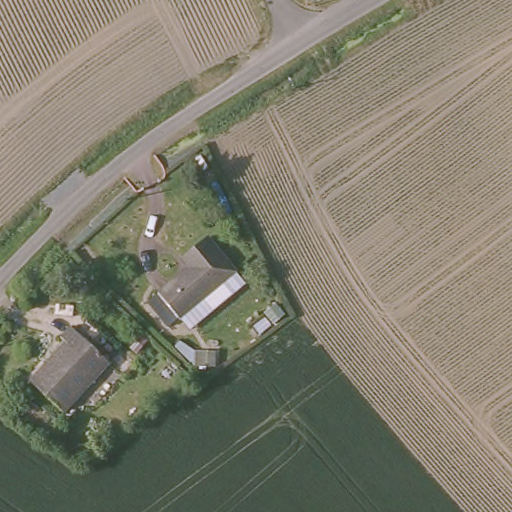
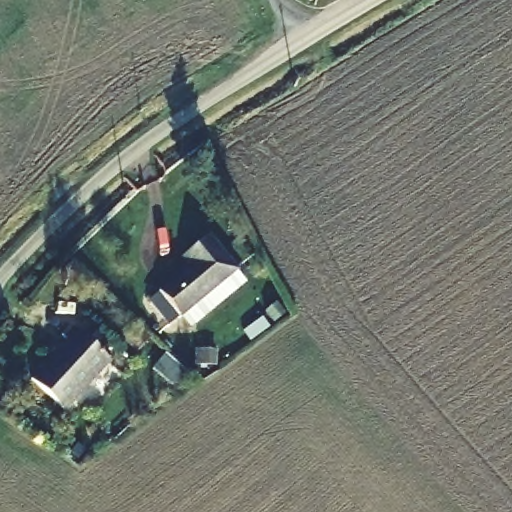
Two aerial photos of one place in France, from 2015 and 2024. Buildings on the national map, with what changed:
unchanged [(210,288),(186,310),(165,286),(197,258),(188,246),(211,228),(240,263),(253,280),(240,290),(221,302),(210,288)]
unchanged [(70,412),(36,381),(74,340),(70,334),(79,326),(115,362),(70,412)]

